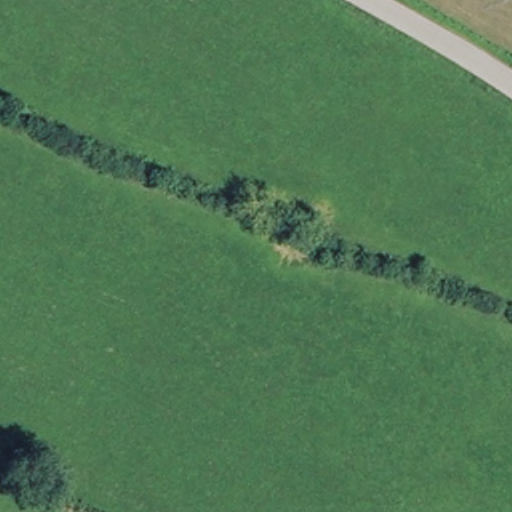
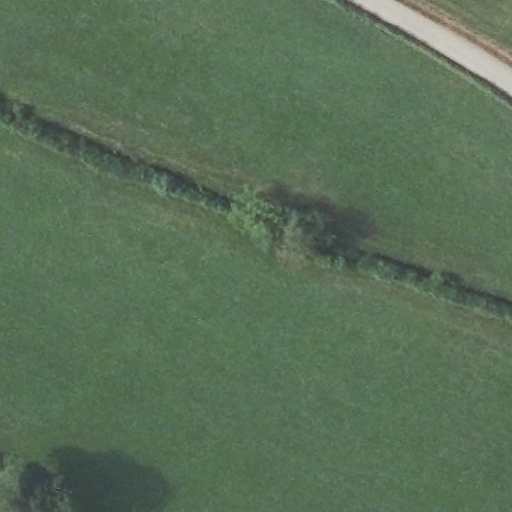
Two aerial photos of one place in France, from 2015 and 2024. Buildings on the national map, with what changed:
[]

